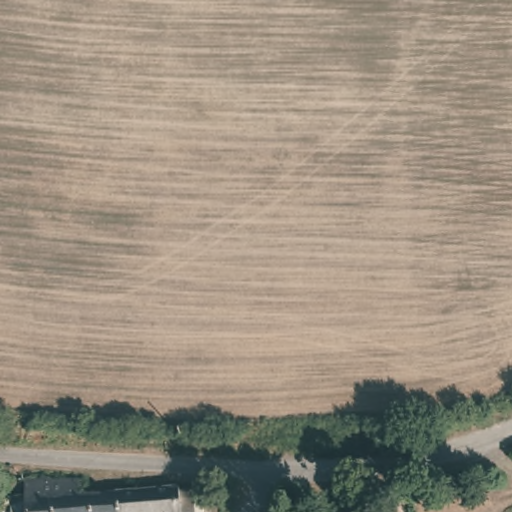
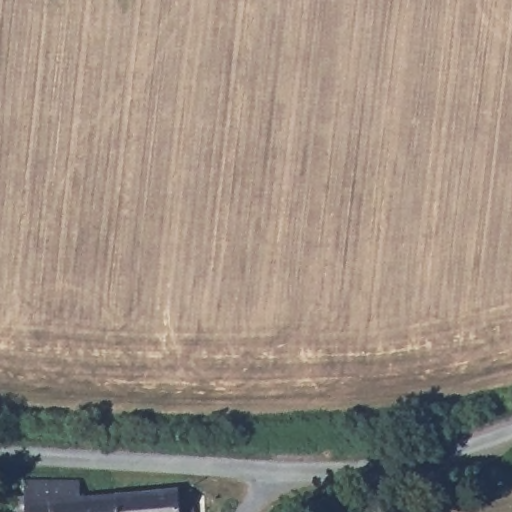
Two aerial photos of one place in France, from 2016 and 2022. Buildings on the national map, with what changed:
unchanged [(80,502),(113,500),(115,512),(10,512),(10,510),(9,501),(23,499),(24,487),(78,487),(80,502)]
unchanged [(170,494),(191,494),(191,512),(115,512),(113,500),(170,494)]

